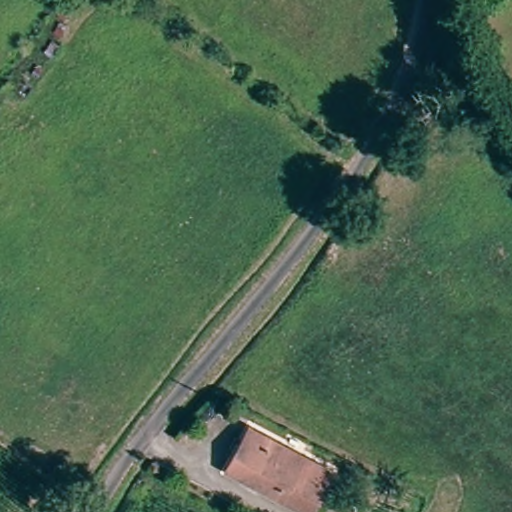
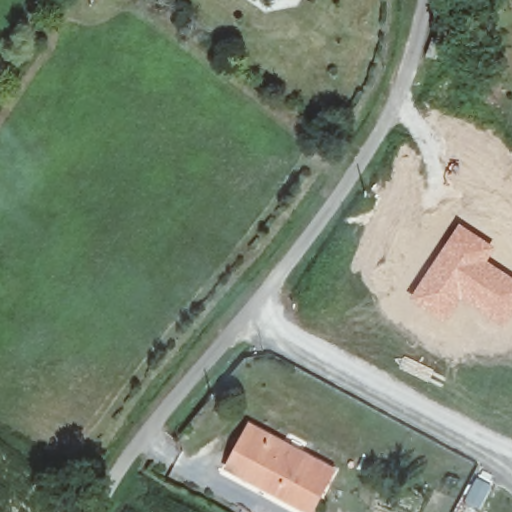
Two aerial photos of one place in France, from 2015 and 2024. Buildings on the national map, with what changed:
new [(458,224),(495,248),(486,261),(512,279),(512,316),(502,329),(460,302),(446,324),(409,299),(458,224)]
unchanged [(314,512),(306,512),(229,469),(251,428),(335,475),(314,512)]

